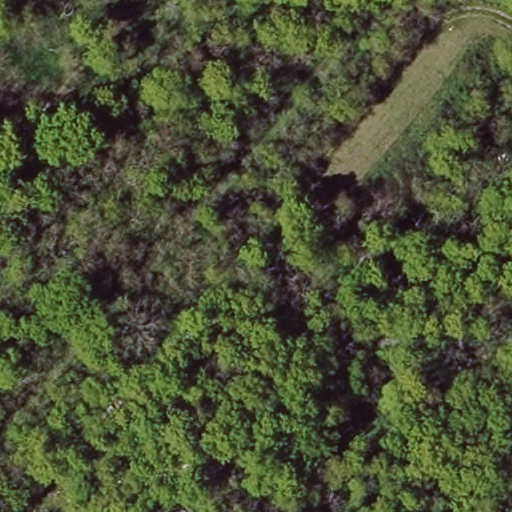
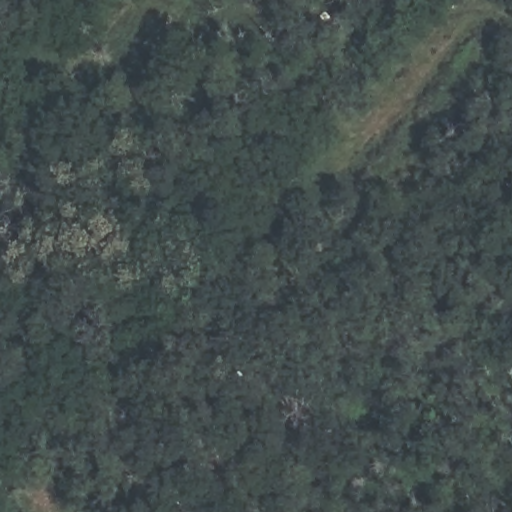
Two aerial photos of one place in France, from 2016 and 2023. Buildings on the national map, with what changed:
unchanged [(472,329),(490,350),(438,397),(415,372),(472,329)]
unchanged [(162,512),(173,499),(188,512),(162,512)]

